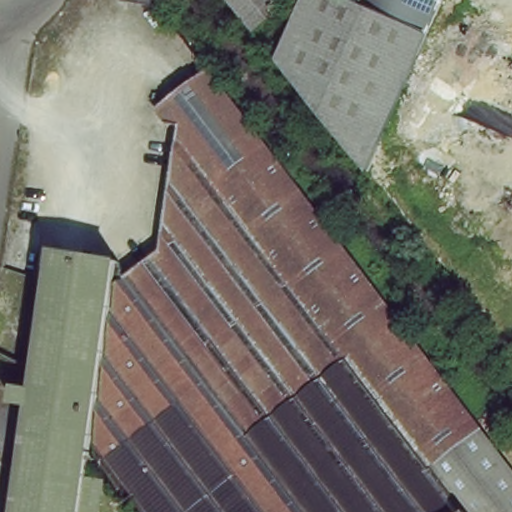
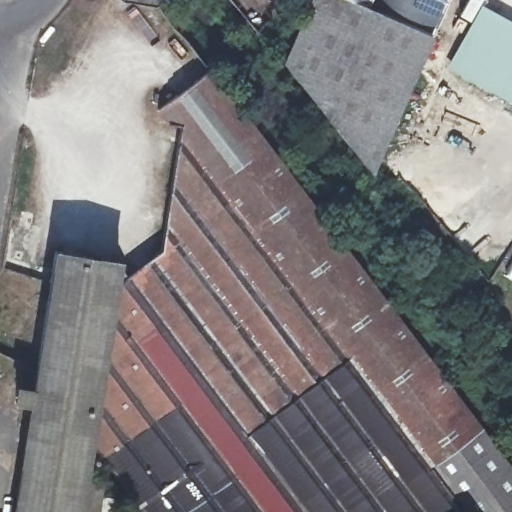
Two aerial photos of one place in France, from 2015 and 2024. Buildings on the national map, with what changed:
unchanged [(126,4),(128,0),(164,0),(160,9),(126,4)]
unchanged [(286,12),(262,34),(257,30),(237,6),(232,0),(301,0),(295,5),(286,12)]
unchanged [(400,20),(437,36),(407,103),(377,169),(349,135),(287,61),(315,0),(354,0),(385,14),(400,20)]
unchanged [(437,36),(400,20),(385,14),(354,0),(452,0),(437,34),(437,36)]
new [(447,66),(482,5),(512,22),(512,102),(447,66)]
unchanged [(20,468),(30,408),(12,405),(14,390),(32,392),(38,353),(46,299),(53,253),(116,262),(126,274),(130,278),(162,250),(170,201),(177,157),(182,126),(167,124),(157,109),(209,72),(228,96),(267,147),(298,189),(330,229),(362,273),(395,315),(427,359),(469,415),(502,458),(512,472),(512,512),(143,512),(120,480),(90,442),(85,478),(105,481),(99,512),(14,512),(20,468)]

